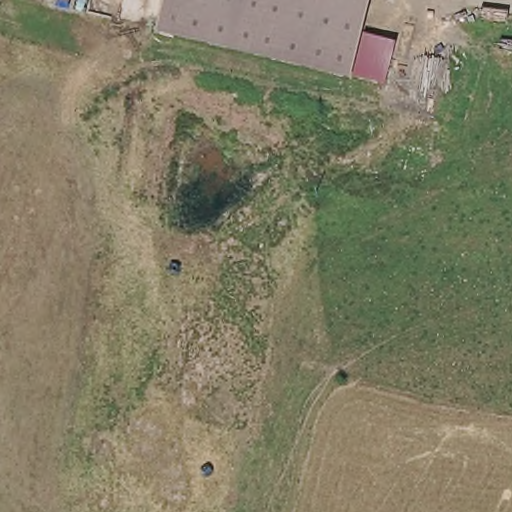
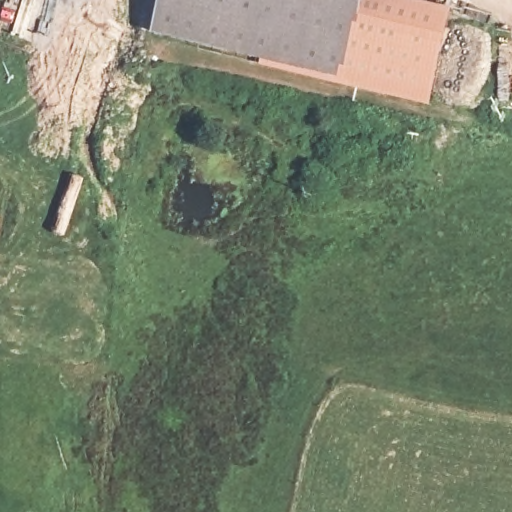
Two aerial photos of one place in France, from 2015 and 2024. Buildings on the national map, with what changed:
unchanged [(348,77),(153,32),(161,0),(366,0),(348,77)]
new [(352,81),(344,79),(345,76),(348,77),(362,15),(448,35),(432,105),(352,87),(352,81)]

